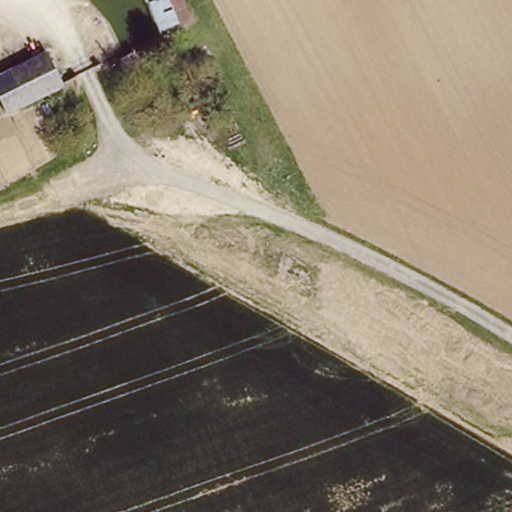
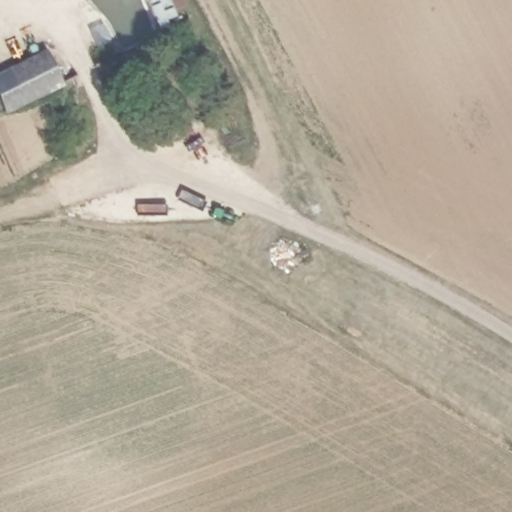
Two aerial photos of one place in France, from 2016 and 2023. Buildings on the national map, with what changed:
unchanged [(164,29),(155,0),(174,0),(182,22),(164,29)]
unchanged [(16,109),(2,81),(44,57),(60,85),(16,109)]

